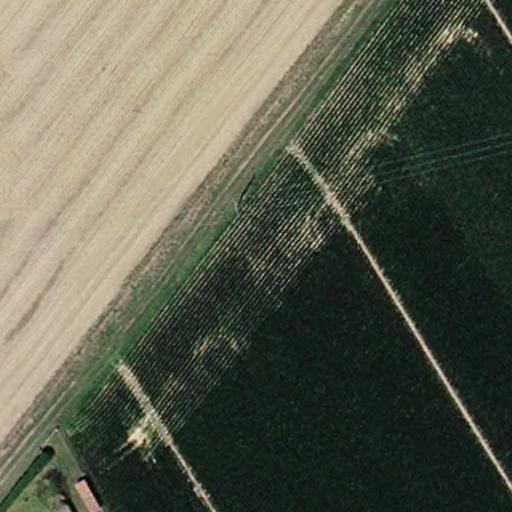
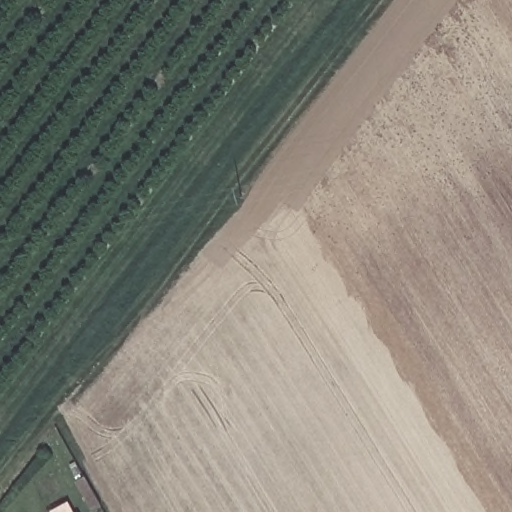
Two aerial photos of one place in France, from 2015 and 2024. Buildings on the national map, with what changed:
unchanged [(67,512),(47,512),(62,504),(67,512)]

